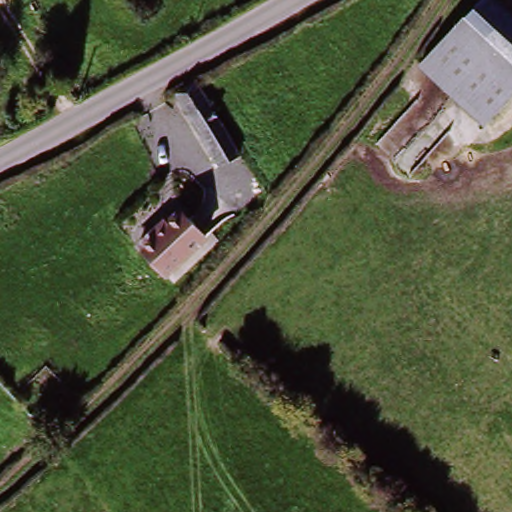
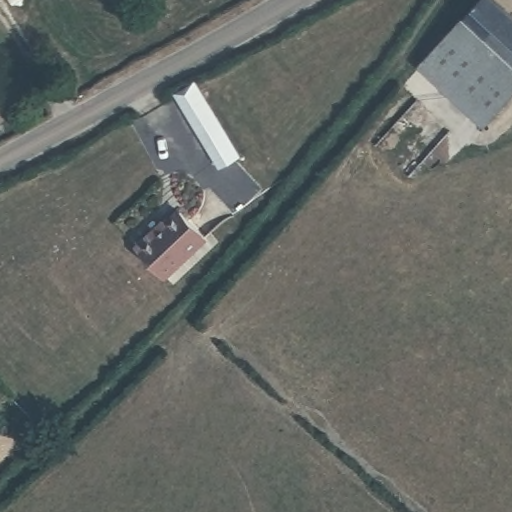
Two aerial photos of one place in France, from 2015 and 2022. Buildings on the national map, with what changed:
unchanged [(493,0),(512,19),(512,75),(461,25),(485,0),(493,0)]
unchanged [(482,125),(421,65),(461,25),(512,75),(512,94),(482,125)]
unchanged [(215,165),(174,90),(194,80),(236,153),(215,165)]
unchanged [(214,239),(174,277),(145,247),(160,231),(165,231),(187,210),(214,239)]

